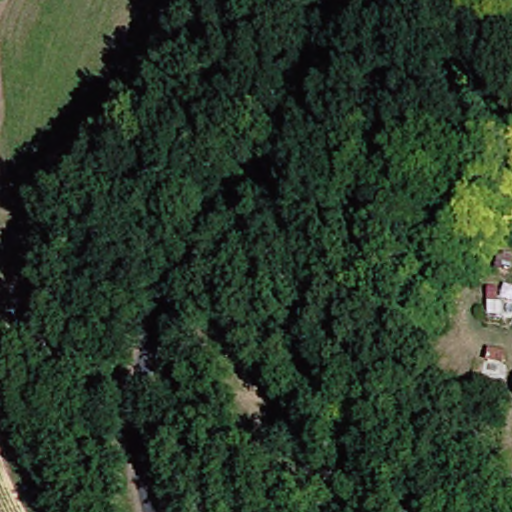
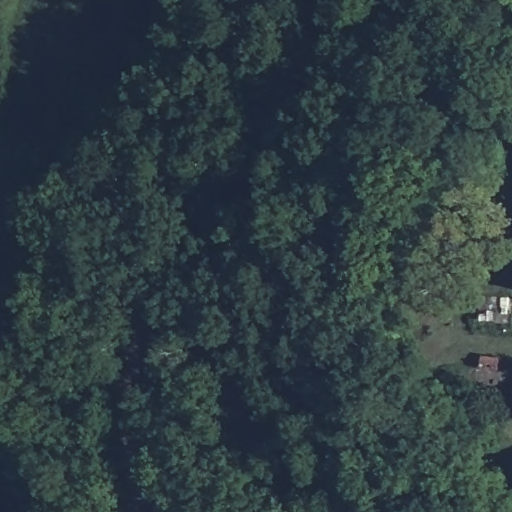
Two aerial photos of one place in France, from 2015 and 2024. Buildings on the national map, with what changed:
[]

